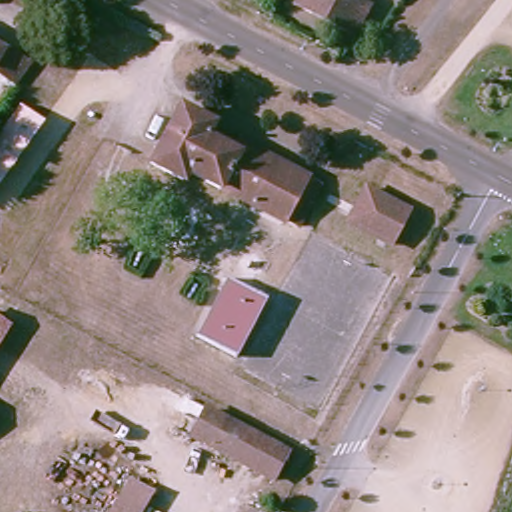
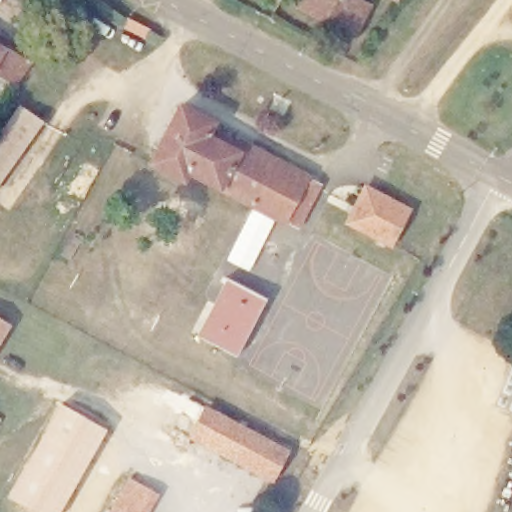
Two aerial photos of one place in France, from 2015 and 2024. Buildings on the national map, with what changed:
unchanged [(311,0),(363,0),(346,35),(304,14),(311,0)]
unchanged [(398,1),(397,0),(399,0),(398,1)]
unchanged [(28,61),(14,81),(0,73),(0,45),(28,61)]
unchanged [(216,117),(212,123),(312,170),(309,175),(321,181),(303,221),(289,215),(287,221),(190,171),(186,179),(151,161),(183,100),(216,117)]
unchanged [(18,104),(43,122),(0,185),(0,131),(18,104)]
unchanged [(414,207),(396,243),(350,220),(369,185),(414,207)]
unchanged [(233,352),(198,332),(226,281),(262,301),(233,352)]
unchanged [(11,325),(0,343),(0,318),(11,325)]
new [(107,430),(60,512),(33,512),(8,498),(61,403),(107,430)]
unchanged [(273,481),(187,437),(208,404),(290,452),(273,481)]
unchanged [(146,512),(111,512),(130,477),(157,494),(146,512)]

